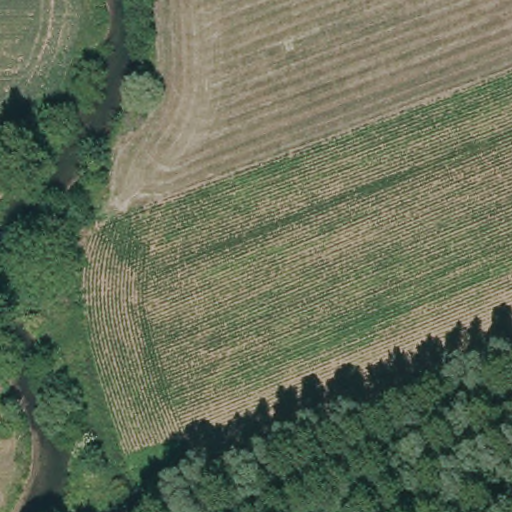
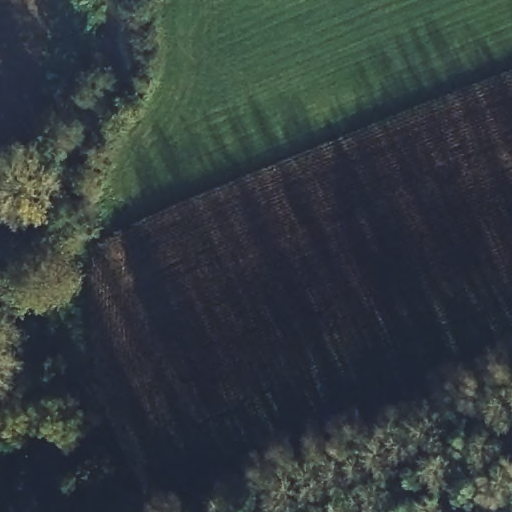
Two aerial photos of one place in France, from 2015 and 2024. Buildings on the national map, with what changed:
[]

